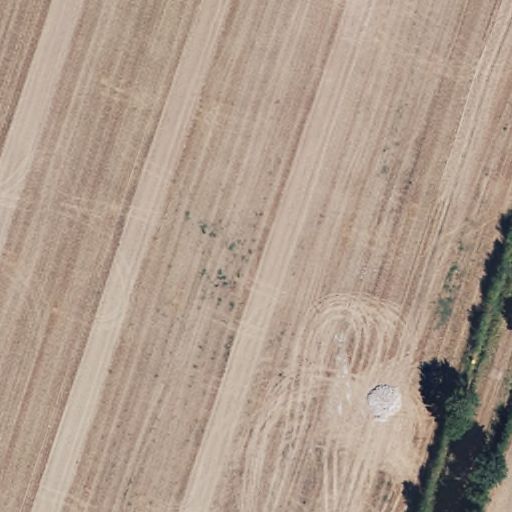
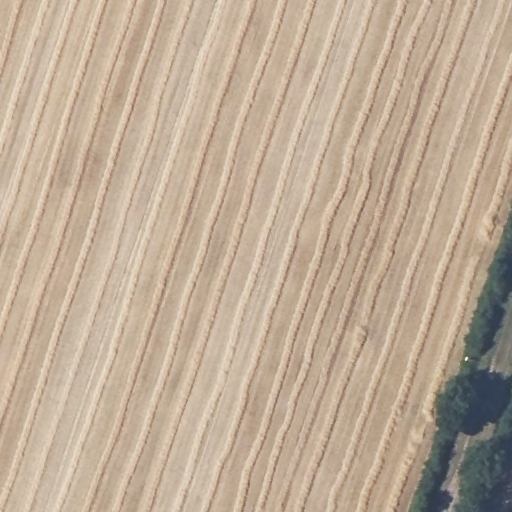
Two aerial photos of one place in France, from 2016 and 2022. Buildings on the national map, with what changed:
[]

